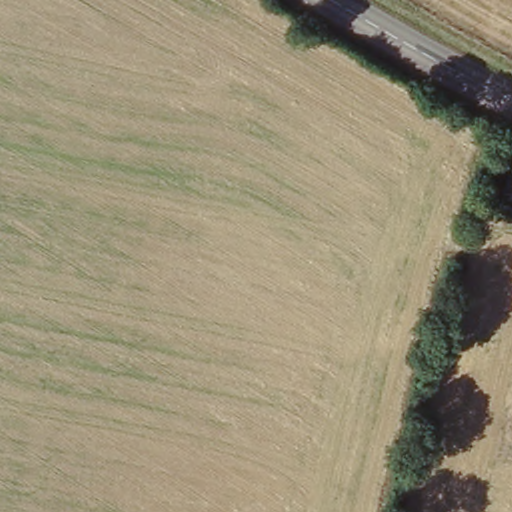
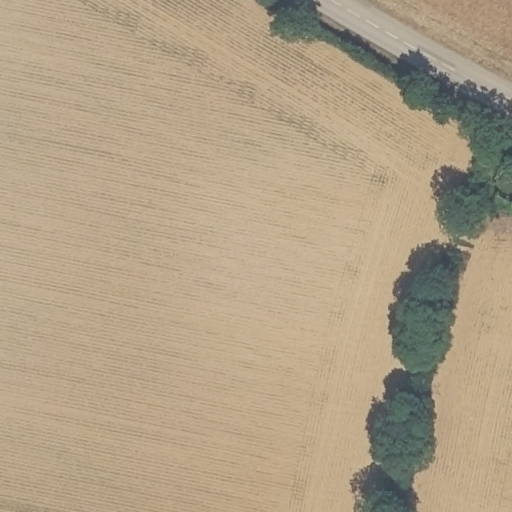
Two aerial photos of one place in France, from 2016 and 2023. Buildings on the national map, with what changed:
unchanged [(510,202),(512,195),(512,202),(510,202)]

